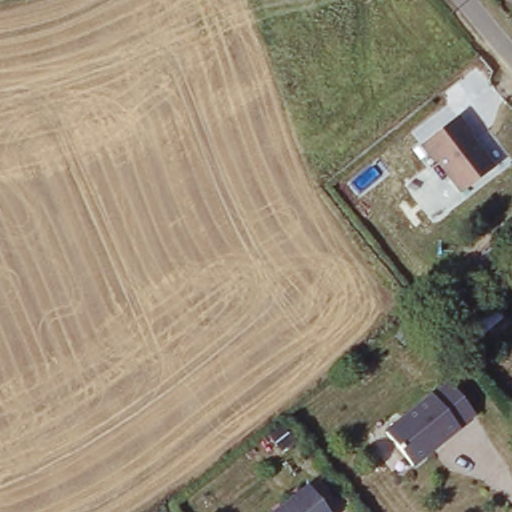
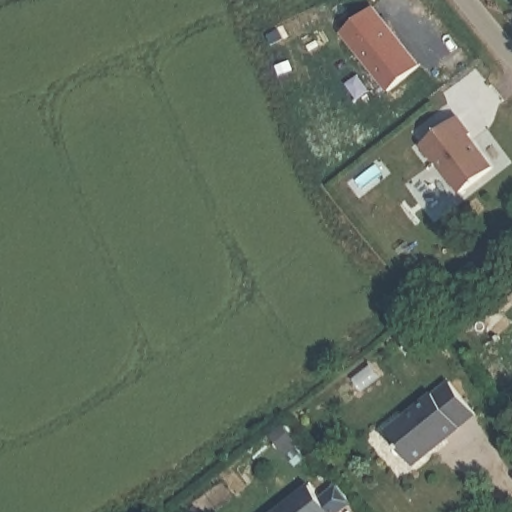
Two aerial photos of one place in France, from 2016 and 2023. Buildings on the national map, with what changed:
new [(373,12),(420,70),(389,94),(342,36),(373,12)]
unchanged [(459,122),(472,141),(470,142),(495,176),(464,200),(440,167),(437,169),(422,149),(459,122)]
unchanged [(383,432),(451,388),(482,422),(418,470),(383,432)]
unchanged [(330,512),(284,512),(313,489),(330,512)]

